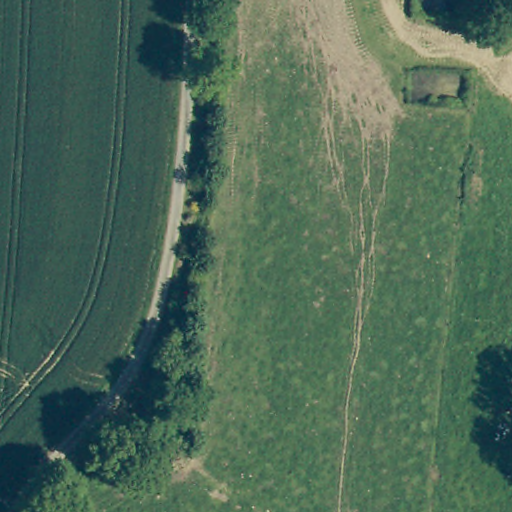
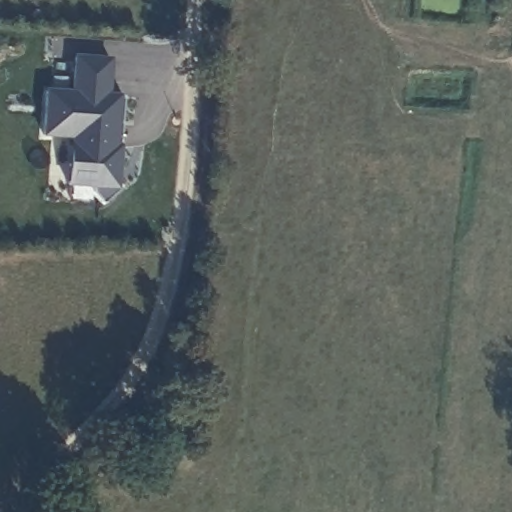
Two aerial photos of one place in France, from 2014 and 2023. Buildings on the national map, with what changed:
new [(110,94),(121,95),(116,144),(121,144),(117,184),(120,188),(101,202),(90,188),(67,186),(70,140),(41,138),(45,89),(71,90),(74,55),(112,57),(110,94)]

